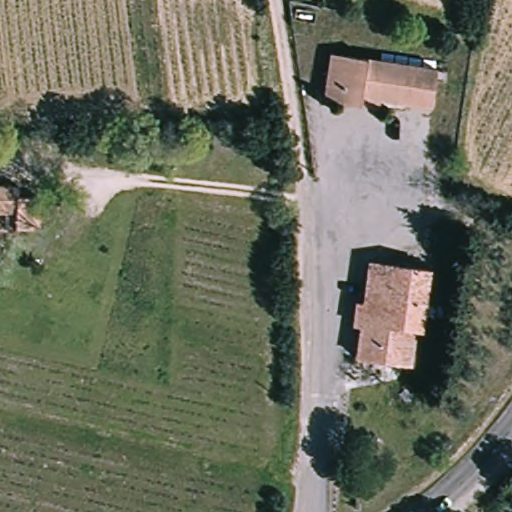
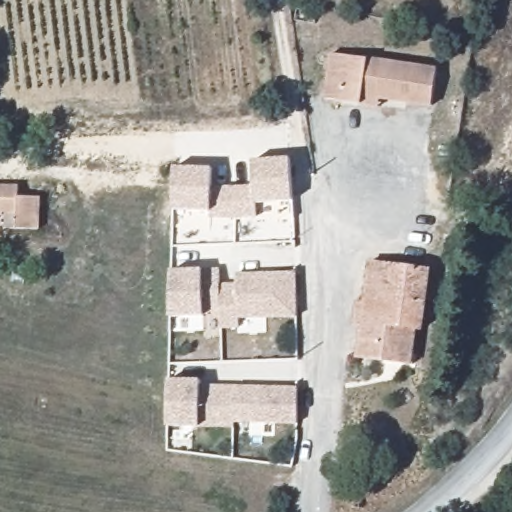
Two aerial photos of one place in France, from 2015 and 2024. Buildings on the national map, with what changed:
unchanged [(350,101),(329,97),(337,51),(441,67),(434,105),(386,96),(384,108),(350,101)]
new [(212,188),(254,186),(253,161),(291,157),(294,201),(256,204),(256,217),(211,219),(212,211),(173,210),(174,167),(213,167),(212,188)]
unchanged [(20,192),(40,193),(39,226),(20,226),(8,226),(9,208),(0,208),(0,182),(19,182),(20,192)]
unchanged [(371,351),(351,348),(366,253),(425,263),(415,321),(409,320),(404,347),(402,357),(371,351)]
new [(161,267),(214,267),(213,282),(233,283),(233,273),(298,273),(299,316),(235,316),(235,325),(215,325),(215,310),(196,310),(196,313),(196,314),(160,314),(161,267)]
new [(158,374),(193,375),(193,380),(298,384),(297,419),(230,417),(230,422),(158,420),(158,374)]

